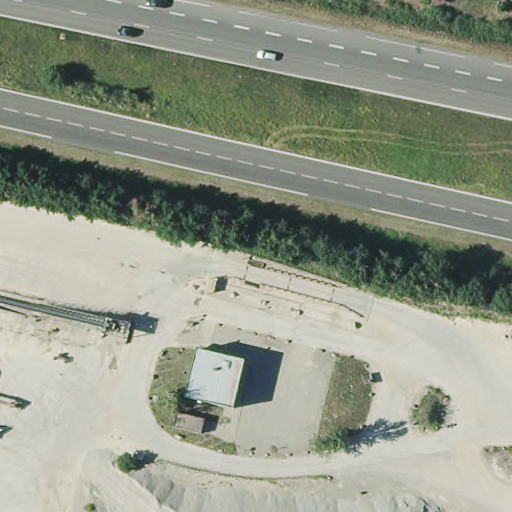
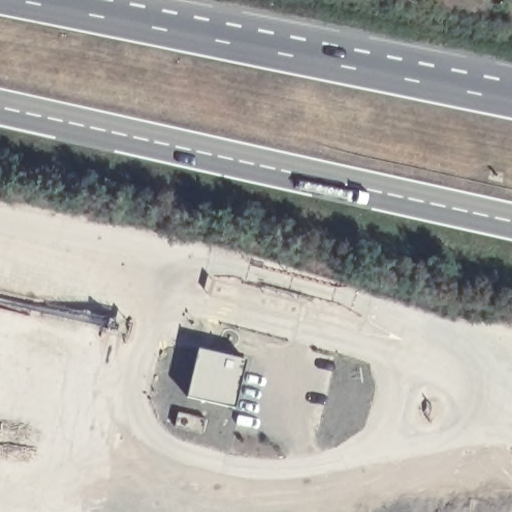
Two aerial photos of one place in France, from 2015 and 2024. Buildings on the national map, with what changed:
unchanged [(188,400),(199,350),(251,361),(239,411),(188,400)]

